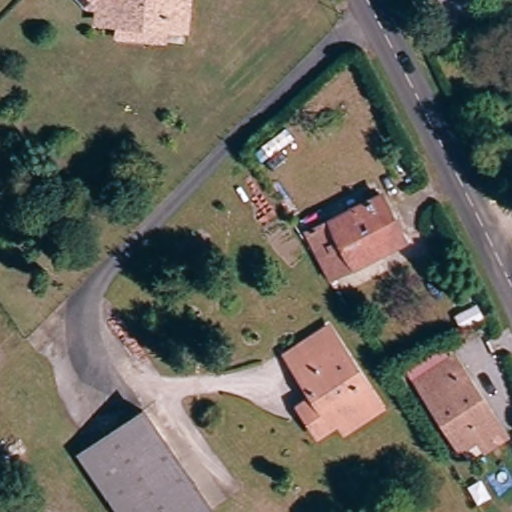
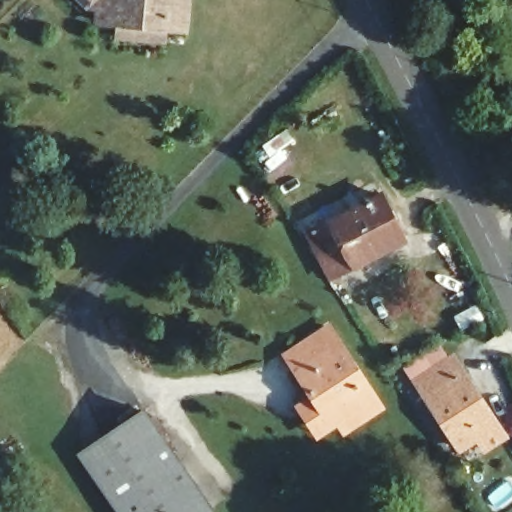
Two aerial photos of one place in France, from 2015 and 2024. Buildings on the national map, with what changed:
unchanged [(169,26),(167,40),(119,38),(120,21),(97,20),(97,8),(91,7),(84,0),(193,0),(192,28),(169,26)]
unchanged [(404,238),(331,273),(305,228),(382,193),(404,238)]
unchanged [(304,410),(316,402),(280,349),(330,316),(382,401),(388,410),(342,440),(336,432),(325,440),(304,410)]
unchanged [(471,449),(426,381),(460,358),(504,423),(512,435),(512,439),(497,449),(486,437),(471,449)]
unchanged [(212,508),(206,512),(122,512),(81,448),(146,408),(212,508)]

